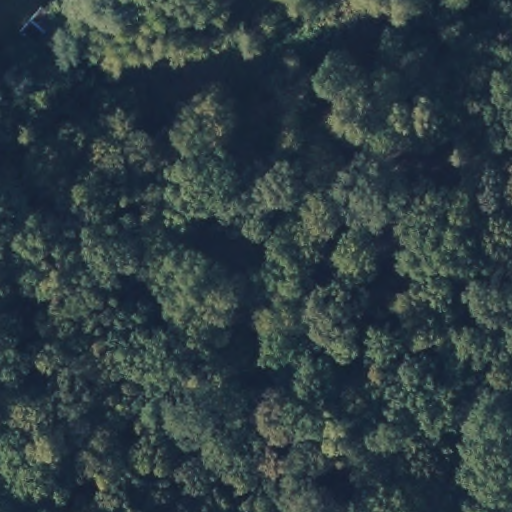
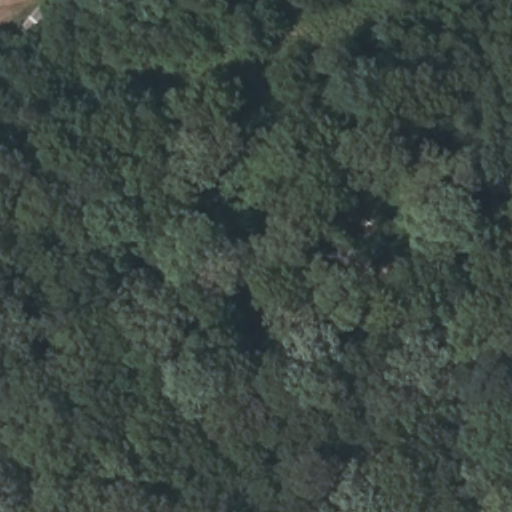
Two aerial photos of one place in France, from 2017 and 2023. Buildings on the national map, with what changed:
unchanged [(37,39),(18,26),(39,0),(56,16),(37,39)]

